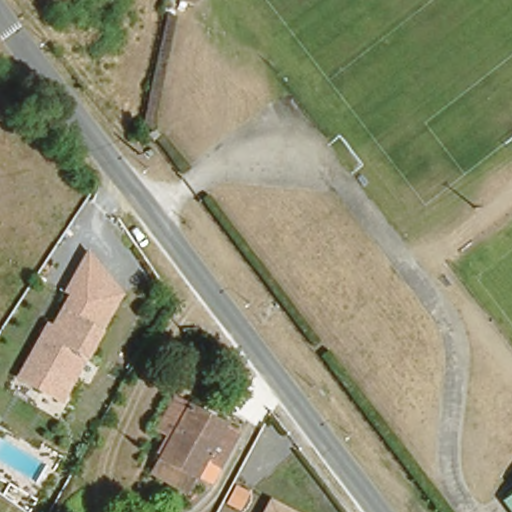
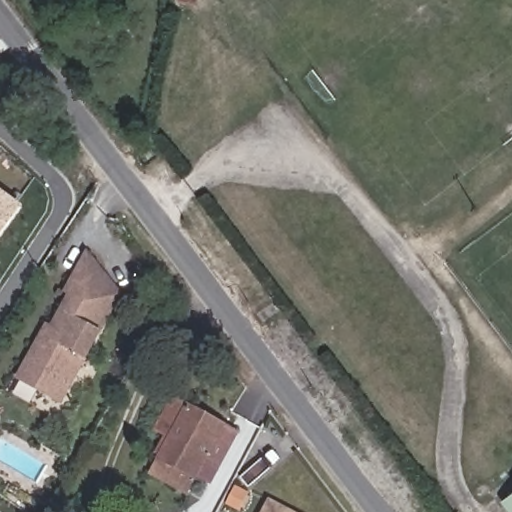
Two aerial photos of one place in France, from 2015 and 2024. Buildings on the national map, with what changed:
unchanged [(158,130),(163,126),(170,134),(165,139),(158,130)]
new [(24,207),(0,240),(0,189),(24,207)]
unchanged [(50,324),(69,291),(64,288),(87,250),(102,270),(120,294),(108,314),(60,397),(16,372),(30,348),(45,321),(50,324)]
unchanged [(172,394),(184,402),(149,465),(136,458),(172,394)]
unchanged [(187,487),(149,465),(184,402),(237,433),(212,476),(202,495),(187,487)]
unchanged [(503,497),(512,490),(512,510),(502,497),(503,497)]
unchanged [(268,500),(290,512),(261,512),(268,500)]

